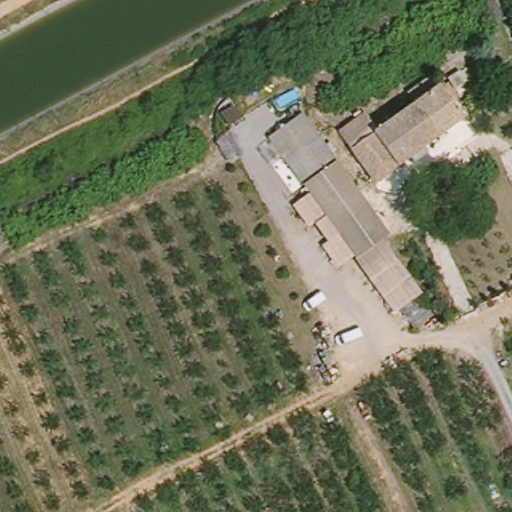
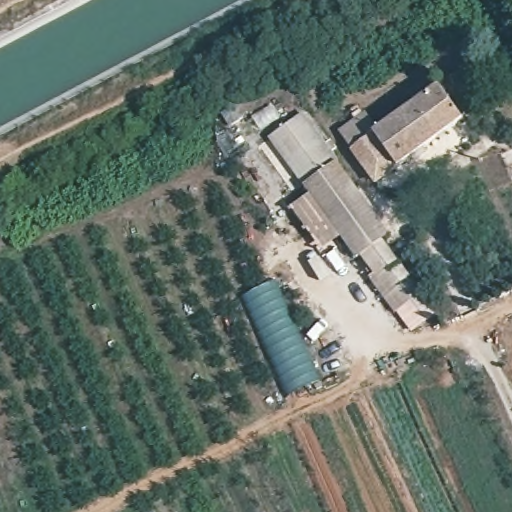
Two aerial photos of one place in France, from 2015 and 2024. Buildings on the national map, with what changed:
unchanged [(462,120),(383,177),(374,184),(368,175),(350,148),(339,130),(369,109),(382,126),(438,86),(462,120)]
unchanged [(302,116),(389,237),(385,240),(355,261),(269,140),(302,116)]
unchanged [(385,240),(419,294),(390,315),(355,261),(385,240)]
new [(321,380),(290,395),(244,297),(274,282),(321,380)]

